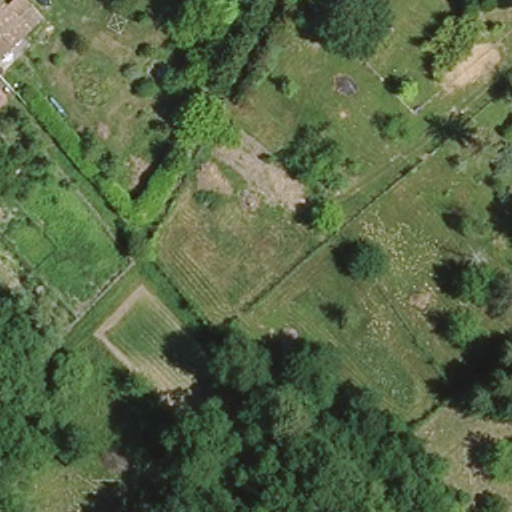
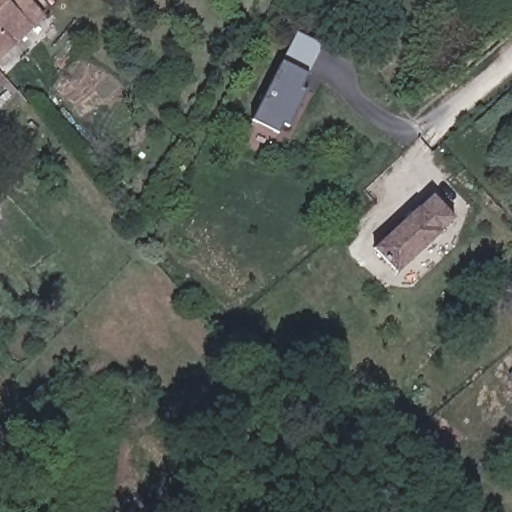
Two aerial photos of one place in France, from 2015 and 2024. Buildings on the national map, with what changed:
unchanged [(28,1),(40,17),(8,41),(11,44),(0,52),(0,0),(4,0),(13,11),(28,1)]
new [(289,126),(282,124),(278,133),(252,121),(283,61),(308,73),(302,88),(306,90),(289,126)]
new [(441,232),(397,273),(374,247),(419,206),(432,195),(454,218),(441,232)]

